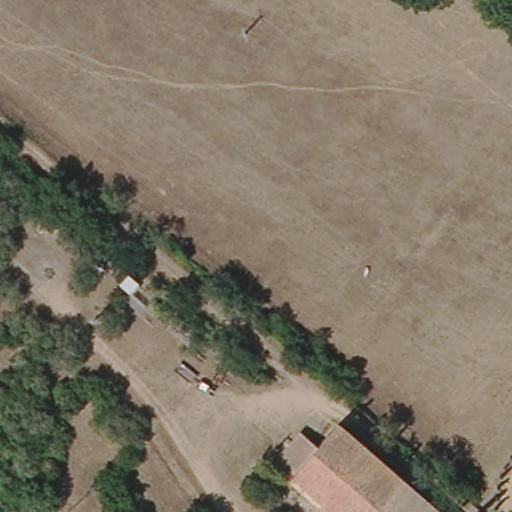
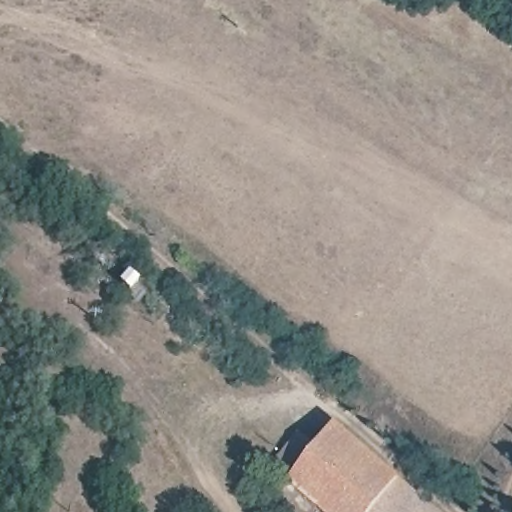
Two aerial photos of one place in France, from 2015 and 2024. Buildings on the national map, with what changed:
unchanged [(341,512),(283,460),(309,431),(326,445),(349,418),(455,512),(341,512)]

